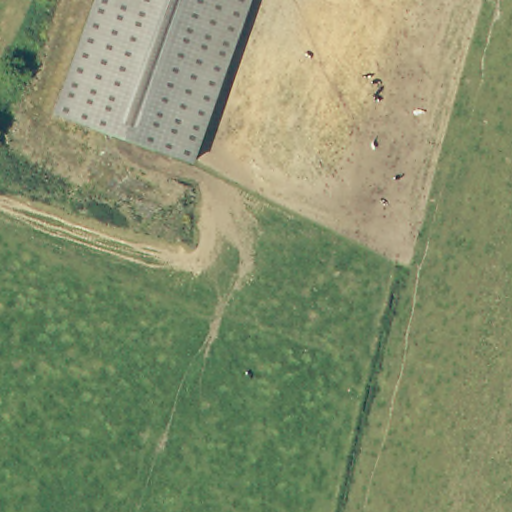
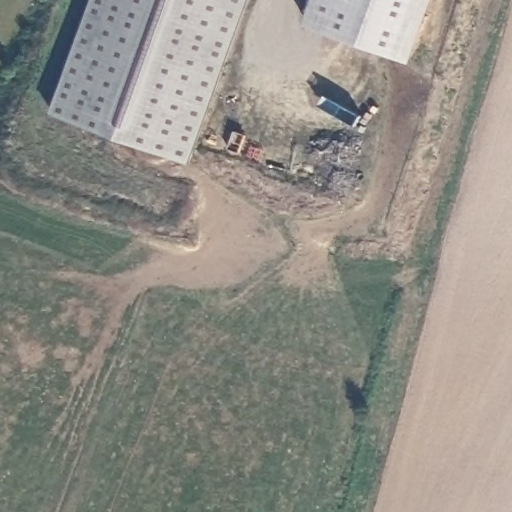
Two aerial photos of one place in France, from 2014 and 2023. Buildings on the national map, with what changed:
unchanged [(96,0),(247,0),(190,162),(56,114),(96,0)]
new [(306,25),(315,0),(438,0),(416,63),(306,25)]

